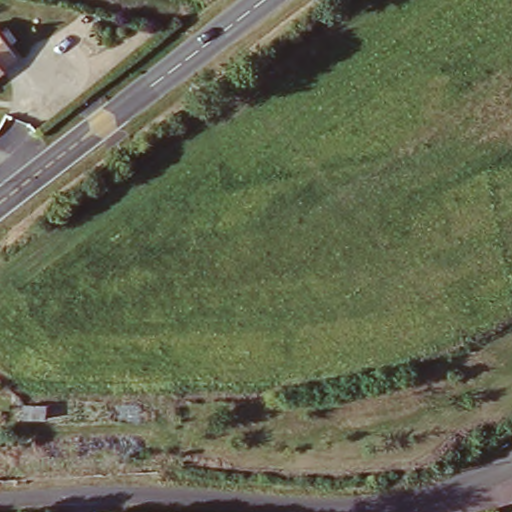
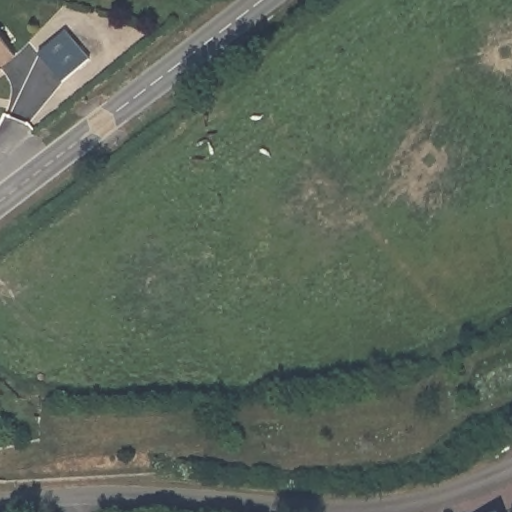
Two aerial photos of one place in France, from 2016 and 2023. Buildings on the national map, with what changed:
unchanged [(22,55),(0,73),(0,29),(22,55)]
new [(68,32),(89,60),(63,81),(42,53),(68,32)]

